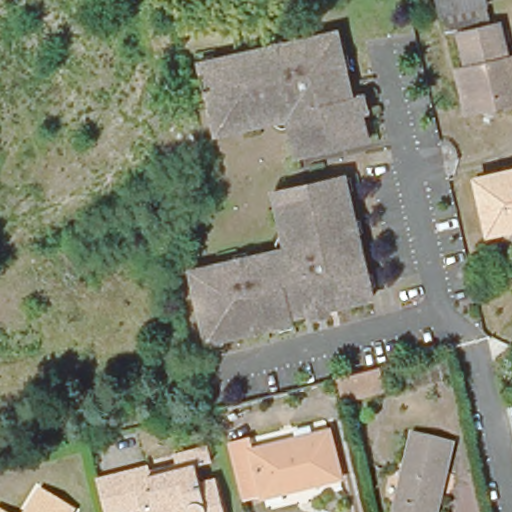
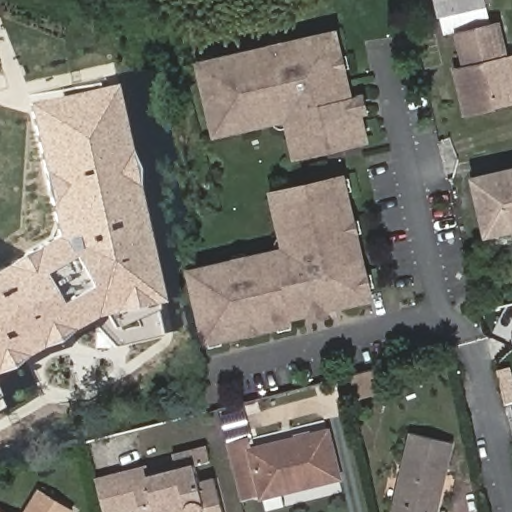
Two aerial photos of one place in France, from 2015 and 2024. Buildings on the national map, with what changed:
unchanged [(439,0),(484,0),(488,19),(505,94),(462,103),(439,0)]
unchanged [(504,17),(512,51),(512,108),(465,119),(462,103),(505,94),(488,19),(504,17)]
unchanged [(303,132),(300,117),(295,118),(294,118),(293,118),(292,118),(291,118),(291,117),(290,117),(289,117),(288,117),(288,116),(287,116),(287,115),(286,115),(286,114),(286,113),(285,112),(232,124),(217,127),(216,122),(200,57),(320,29),(327,27),(332,50),(342,92),(348,91),(354,90),(358,107),(352,109),(358,135),(312,146),(307,147),(303,132)]
new [(22,98),(110,79),(160,296),(163,333),(112,345),(92,323),(74,332),(70,328),(41,345),(39,342),(0,365),(0,261),(53,231),(22,98)]
unchanged [(308,313),(306,307),(288,312),(290,317),(203,337),(187,272),(186,267),(201,263),(274,246),(273,242),(273,241),(272,241),(272,240),(273,239),(273,238),(273,237),(274,236),(274,235),(275,235),(275,234),(276,233),(277,232),(278,232),(279,232),(272,204),(269,189),(274,187),(340,172),(368,293),(324,303),(326,309),(308,313)]
unchanged [(476,189),(512,180),(512,237),(488,242),(476,189)]
unchanged [(379,396),(337,406),(331,382),(374,372),(379,396)]
new [(0,406),(0,396),(3,404),(0,406)]
unchanged [(228,445),(249,440),(252,448),(327,430),(338,477),(261,497),(260,493),(241,497),(228,445)]
unchanged [(453,442),(446,471),(443,485),(437,512),(393,512),(412,432),(453,442)]
unchanged [(137,512),(103,512),(96,487),(112,483),(146,476),(147,481),(176,474),(173,458),(206,451),(210,466),(194,470),(198,487),(214,483),(221,512),(139,512),(137,512)]
unchanged [(71,511),(71,512),(26,512),(40,491),(71,511)]

